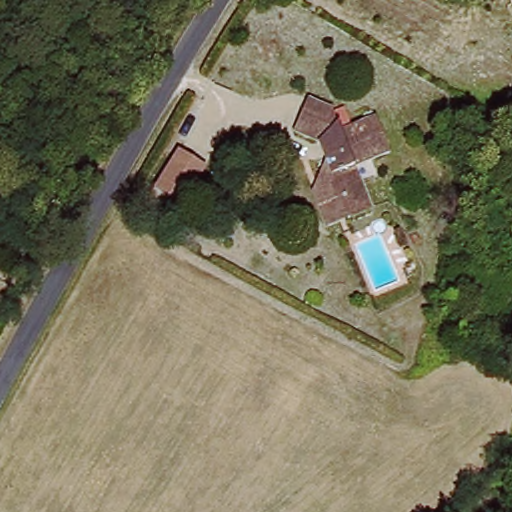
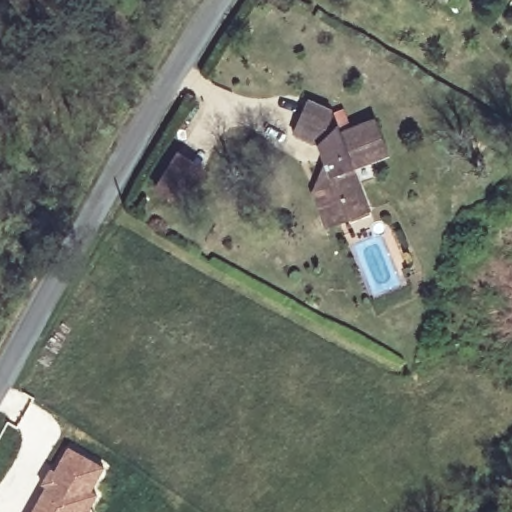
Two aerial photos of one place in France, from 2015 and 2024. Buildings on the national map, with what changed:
unchanged [(325,107),(344,136),(382,122),(394,154),(362,165),(378,208),(330,226),(315,188),(335,157),(312,128),(285,115),(304,85),(330,100),(325,107)]
new [(179,149),(202,163),(182,199),(158,184),(179,149)]
new [(99,494),(90,511),(92,512),(31,512),(45,488),(40,485),(50,468),(54,470),(69,447),(105,467),(92,491),(99,494)]

